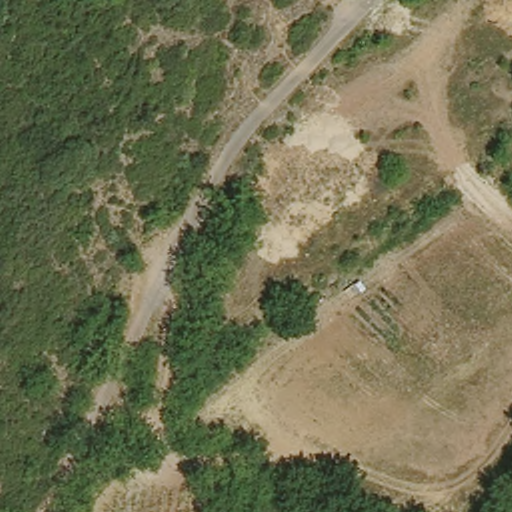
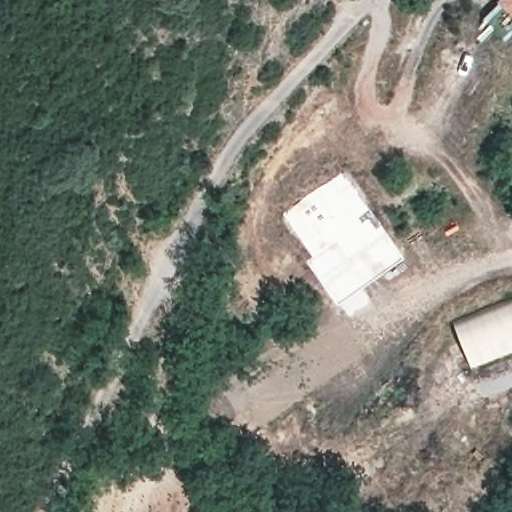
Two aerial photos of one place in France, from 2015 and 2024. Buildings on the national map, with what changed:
new [(512,0),(512,12),(497,0),(512,0)]
new [(305,261),(312,255),(282,215),(342,170),(403,255),(336,303),(305,261)]
new [(453,326),(512,300),(512,352),(470,370),(453,326)]

